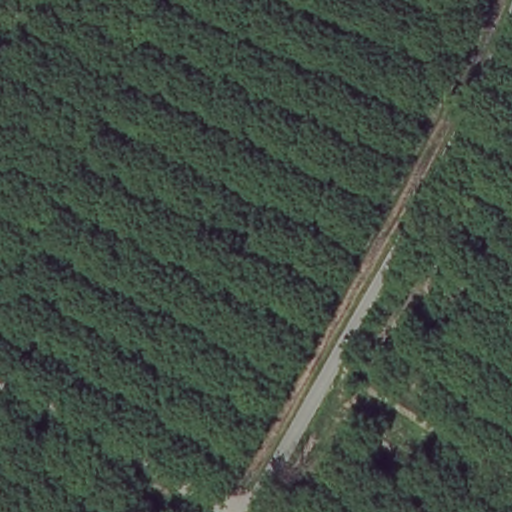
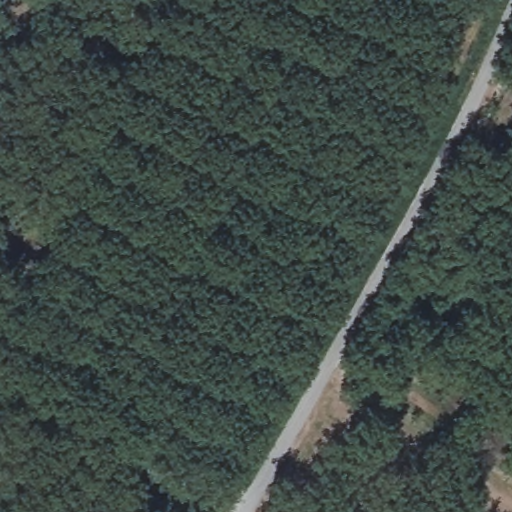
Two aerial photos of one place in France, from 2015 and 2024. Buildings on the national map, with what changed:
[]

